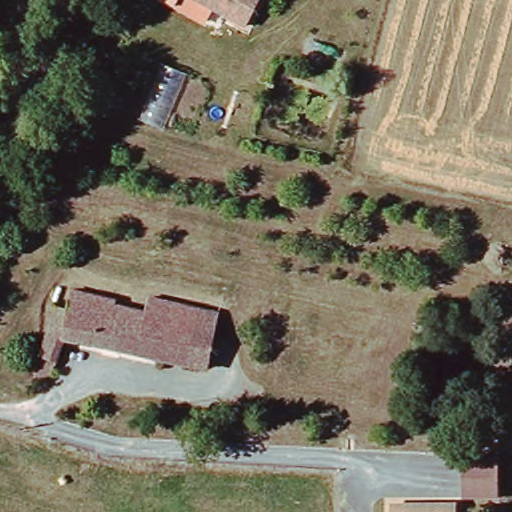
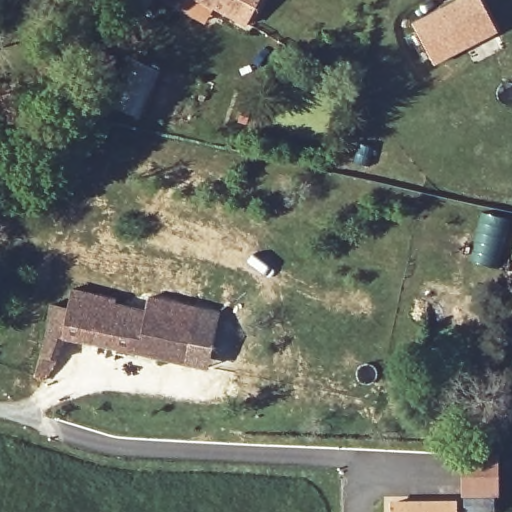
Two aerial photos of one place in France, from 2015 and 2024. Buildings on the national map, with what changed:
unchanged [(203,24),(163,0),(203,0),(214,6),(203,24)]
unchanged [(203,0),(267,0),(252,28),(203,0)]
new [(435,66),(412,23),(459,0),(481,0),(497,32),(435,66)]
unchanged [(69,340),(52,381),(37,377),(54,328),(57,306),(71,309),(74,290),(116,301),(116,306),(150,313),(152,300),(205,312),(193,365),(69,340)]
unchanged [(193,365),(205,312),(224,316),(213,370),(193,365)]
unchanged [(462,458),(498,457),(499,496),(463,496),(462,458)]
unchanged [(396,502),(458,503),(458,512),(396,512),(396,502)]

